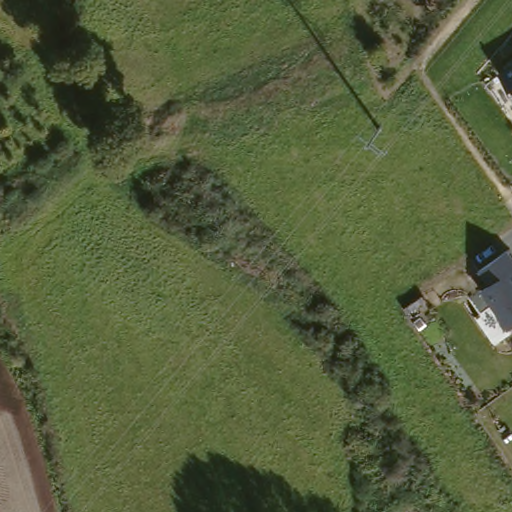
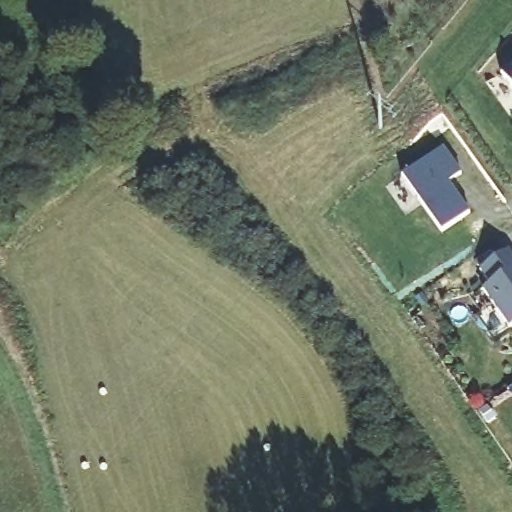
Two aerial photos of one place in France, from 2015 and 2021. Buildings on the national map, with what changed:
unchanged [(512,66),(512,93),(499,74),(512,66)]
new [(402,176),(444,149),(461,173),(449,182),(471,214),(441,233),(402,176)]
unchanged [(492,286),(482,269),(507,251),(512,259),(512,324),(508,327),(485,289),(492,286)]

